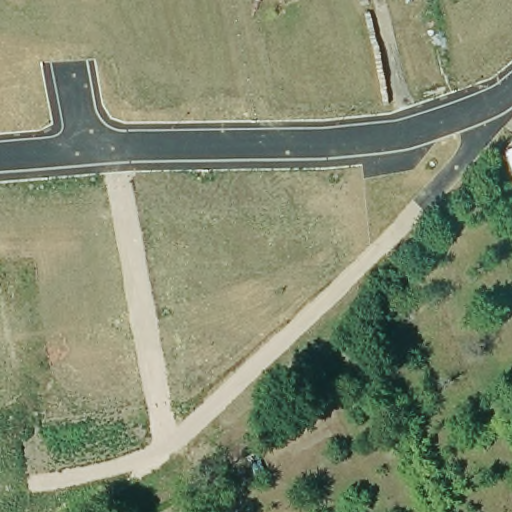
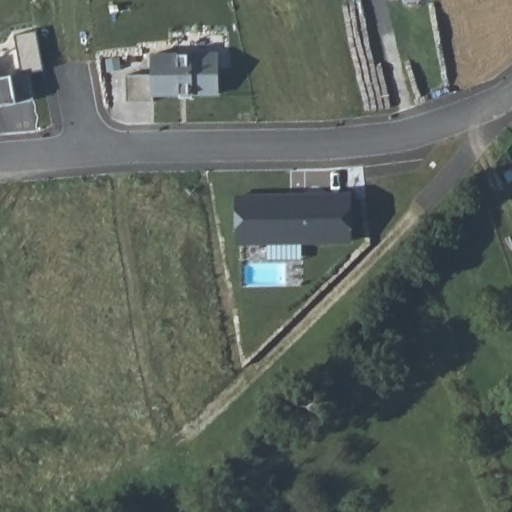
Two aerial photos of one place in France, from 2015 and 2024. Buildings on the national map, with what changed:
new [(14,35),(36,32),(40,71),(28,72),(33,100),(0,106),(0,77),(18,74),(14,35)]
new [(216,53),(219,96),(152,96),(153,101),(126,101),(125,76),(150,75),(151,53),(216,53)]
unchanged [(512,149),(512,161),(509,150),(512,149)]
new [(348,241),(303,241),(304,287),(239,285),(236,193),(346,194),(348,241)]

